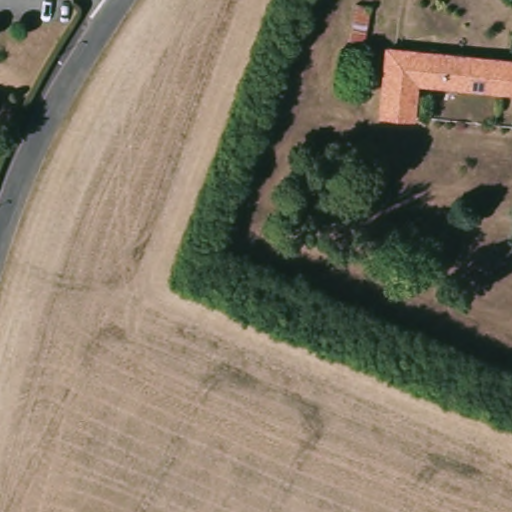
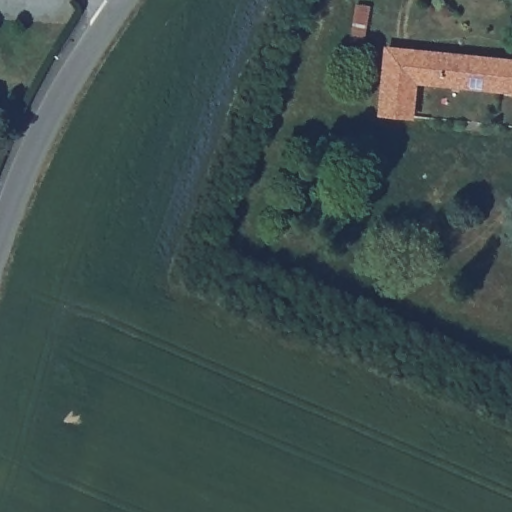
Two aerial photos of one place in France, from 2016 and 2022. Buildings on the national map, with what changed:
unchanged [(494,62),(492,95),(415,88),(412,122),(378,119),(384,52),(494,62)]
unchanged [(512,97),(492,95),(494,62),(512,64),(512,97)]

